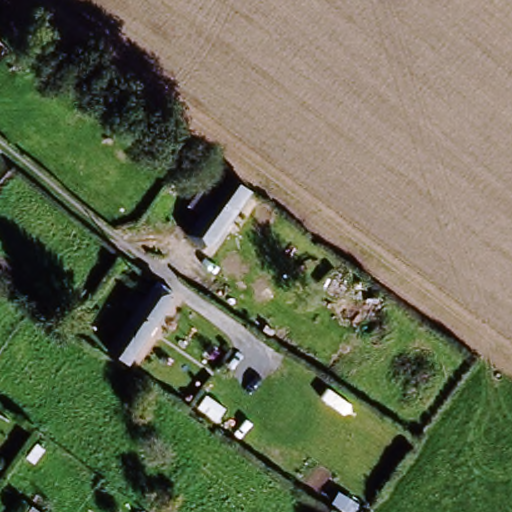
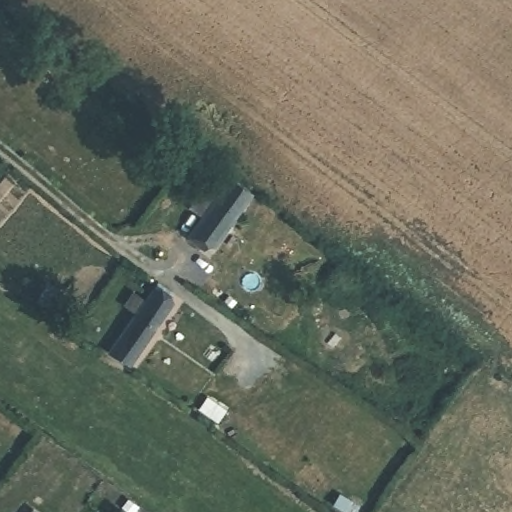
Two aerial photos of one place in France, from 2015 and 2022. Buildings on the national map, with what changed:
unchanged [(187,234),(196,222),(202,212),(192,205),(203,189),(215,197),(231,174),(252,190),(216,237),(211,234),(203,246),(193,239),(187,234)]
unchanged [(111,355),(138,317),(127,309),(135,296),(147,303),(153,294),(160,284),(176,295),(170,305),(173,307),(131,368),(111,355)]

